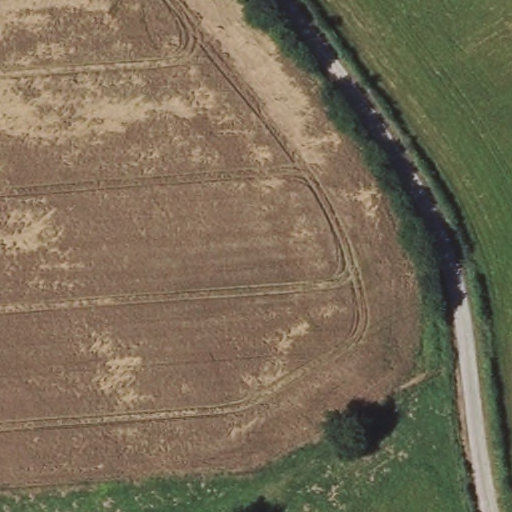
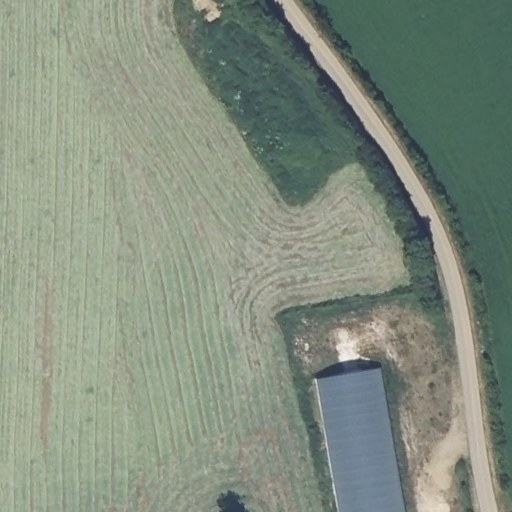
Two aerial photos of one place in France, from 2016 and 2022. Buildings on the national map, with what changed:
new [(408,512),(342,512),(320,378),(383,367),(408,512)]

